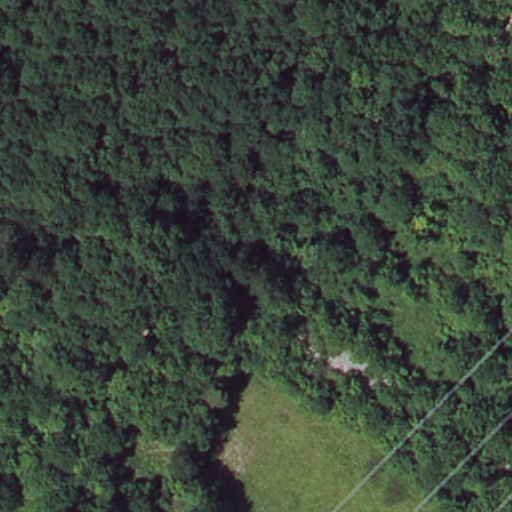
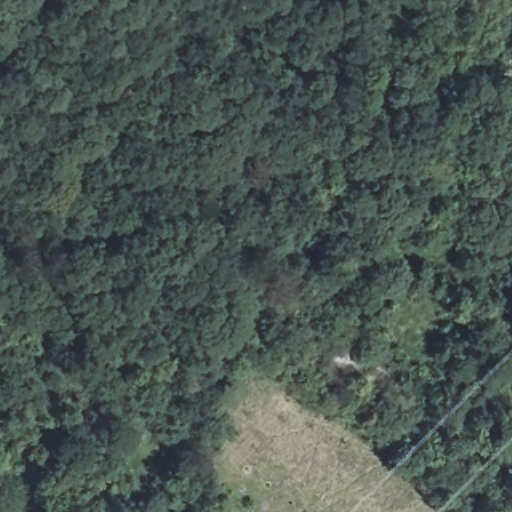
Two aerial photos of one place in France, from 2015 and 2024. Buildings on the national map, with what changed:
[]

